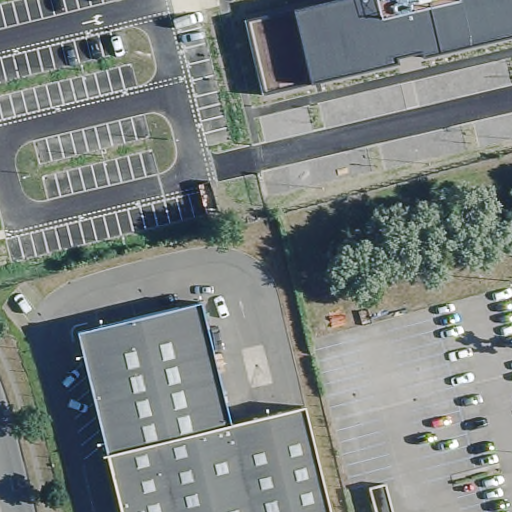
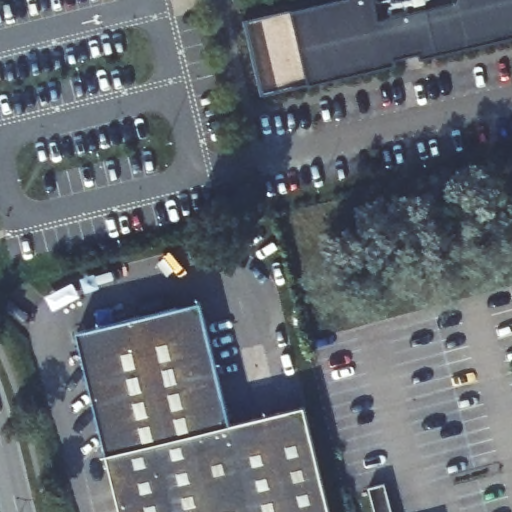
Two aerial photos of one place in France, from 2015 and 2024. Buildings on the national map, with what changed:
unchanged [(261,93),(243,20),(328,0),(512,0),(512,36),(261,93)]
unchanged [(199,302),(230,425),(304,408),(331,512),(121,512),(78,334),(199,302)]
unchanged [(366,486),(381,481),(391,512),(373,512),(366,486)]

